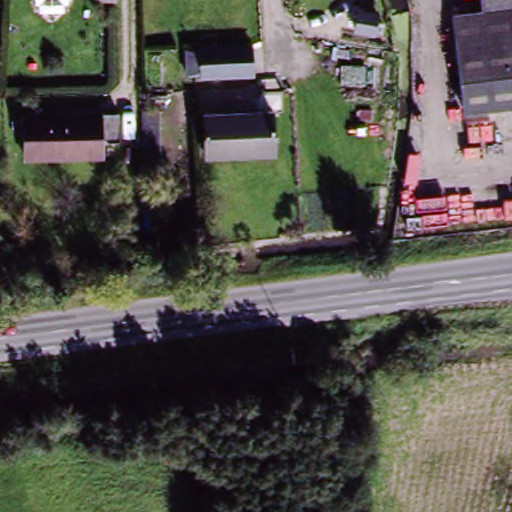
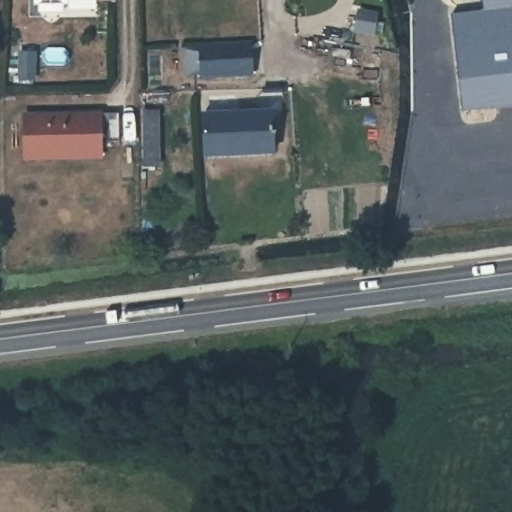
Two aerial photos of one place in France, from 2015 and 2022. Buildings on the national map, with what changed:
unchanged [(484,22),(481,0),(512,0),(512,113),(468,120),(455,27),(484,22)]
unchanged [(343,16),(342,27),(303,24),(305,12),(343,16)]
unchanged [(252,48),(251,77),(201,76),(202,47),(252,48)]
unchanged [(272,116),(271,156),(207,154),(208,114),(272,116)]
unchanged [(28,155),(31,116),(107,121),(105,147),(89,147),(88,162),(63,161),(28,159),(28,155)]

